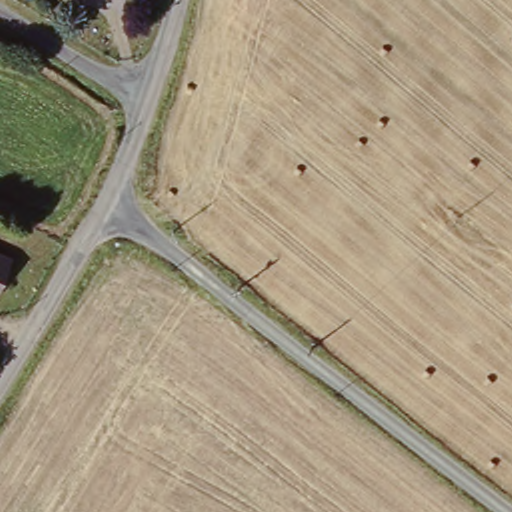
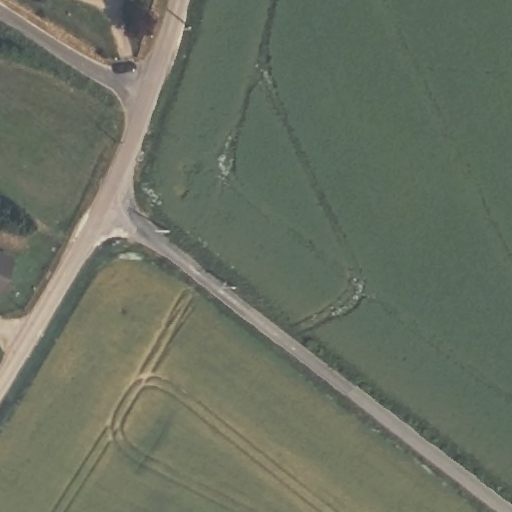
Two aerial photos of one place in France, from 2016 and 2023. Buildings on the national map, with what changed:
unchanged [(19,267),(3,305),(0,304),(0,259),(19,267)]

